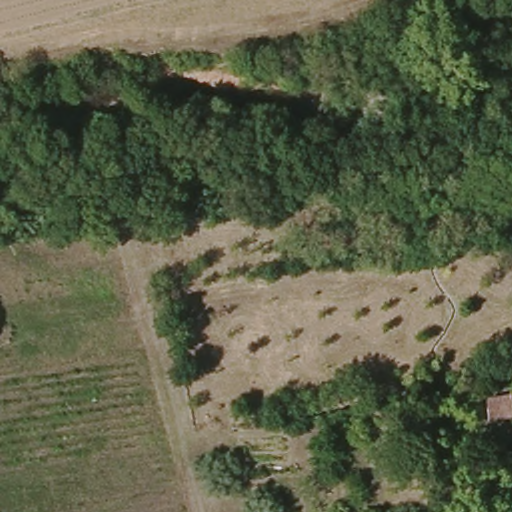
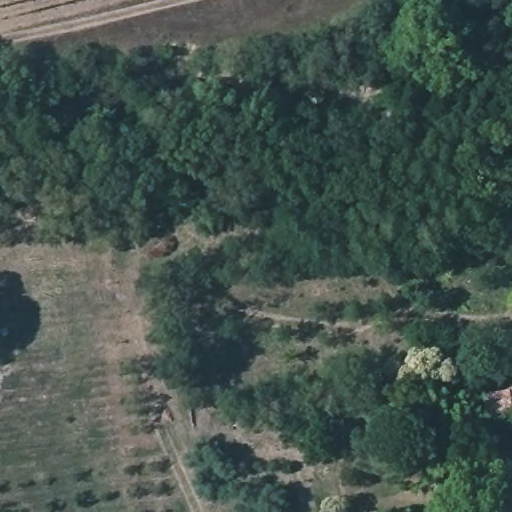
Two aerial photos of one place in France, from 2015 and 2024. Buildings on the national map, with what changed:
unchanged [(487,419),(483,396),(512,389),(512,413),(487,419)]
unchanged [(512,495),(512,512),(504,512),(502,497),(512,495)]

